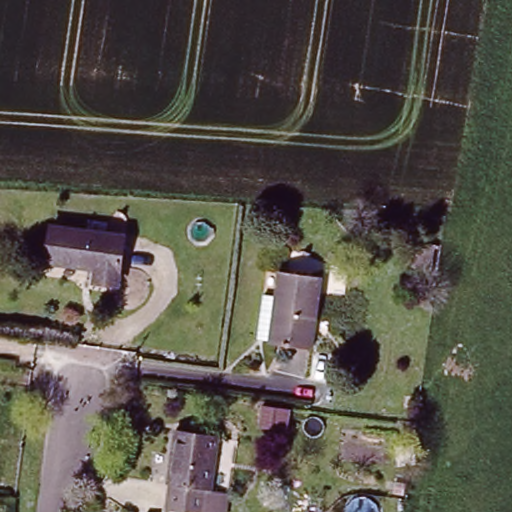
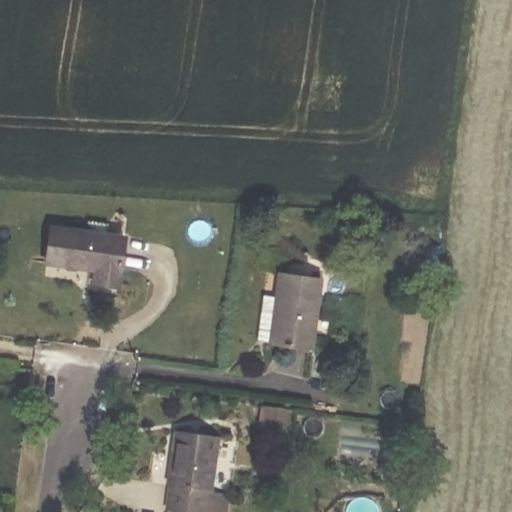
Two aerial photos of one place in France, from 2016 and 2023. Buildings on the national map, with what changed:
unchanged [(129,231),(122,281),(98,277),(100,266),(51,259),(56,220),(129,231)]
unchanged [(322,275),(311,347),(268,340),(279,269),(322,275)]
unchanged [(229,509),(215,508),(173,503),(176,478),(174,477),(181,424),(226,429),(225,434),(219,483),(232,485),(229,509)]

